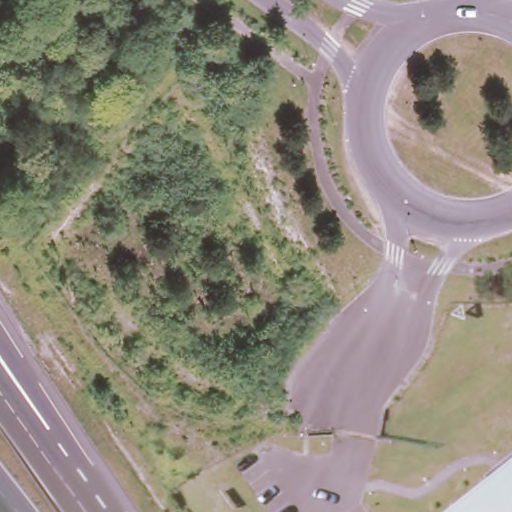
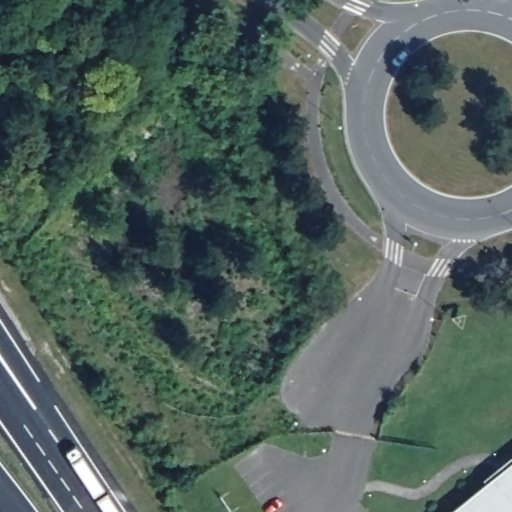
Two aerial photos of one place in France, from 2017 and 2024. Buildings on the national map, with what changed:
unchanged [(512,512),(452,512),(512,464),(512,512)]

